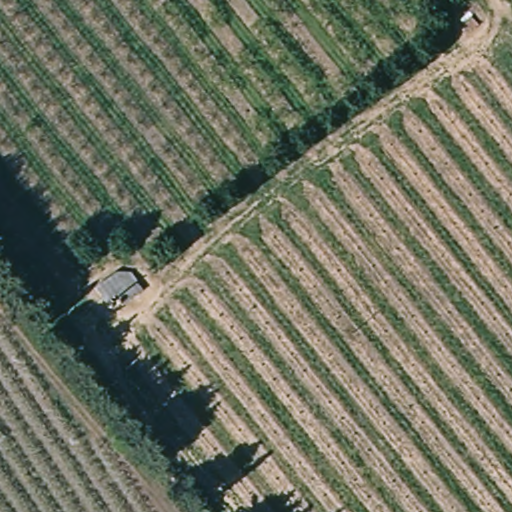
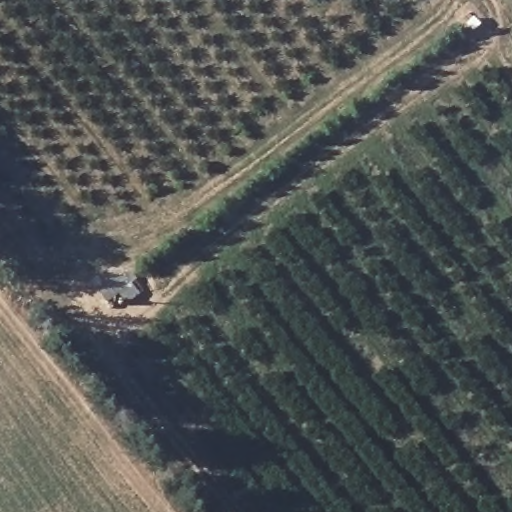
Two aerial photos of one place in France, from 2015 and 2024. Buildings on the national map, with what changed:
unchanged [(100,289),(139,261),(150,288),(115,312),(100,289)]

